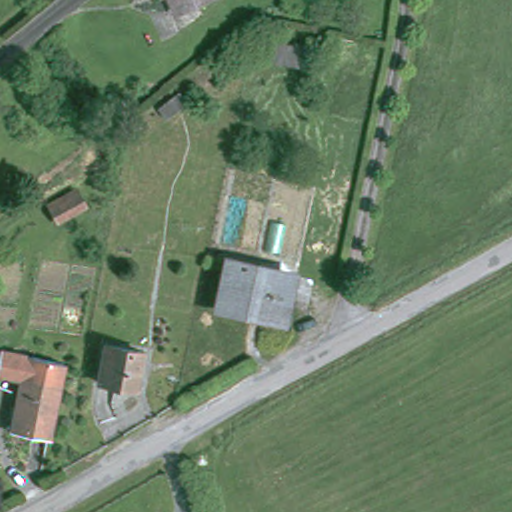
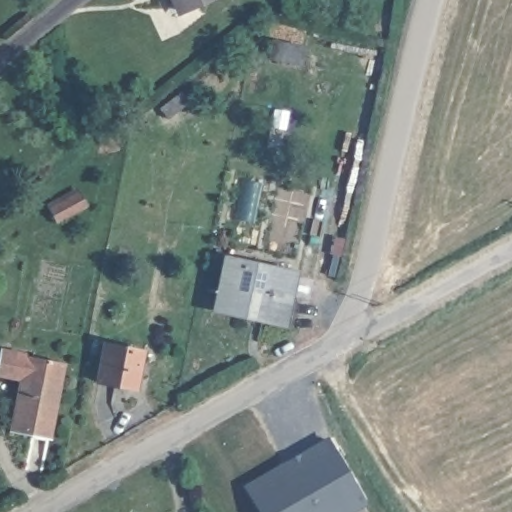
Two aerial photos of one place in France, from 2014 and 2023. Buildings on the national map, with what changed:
unchanged [(180,11),(175,0),(203,0),(180,11)]
unchanged [(272,43),(302,49),(299,64),(270,58),(272,43)]
unchanged [(180,92),(188,102),(168,118),(160,108),(180,92)]
unchanged [(50,209),(78,193),(86,206),(57,222),(50,209)]
unchanged [(288,273),(279,316),(255,311),(254,316),(217,309),(227,261),(288,273)]
unchanged [(105,344),(142,352),(135,389),(98,382),(105,344)]
unchanged [(48,440),(12,432),(22,379),(0,374),(0,360),(2,351),(63,363),(48,440)]
new [(352,512),(259,512),(245,489),(327,437),(367,503),(352,512)]

